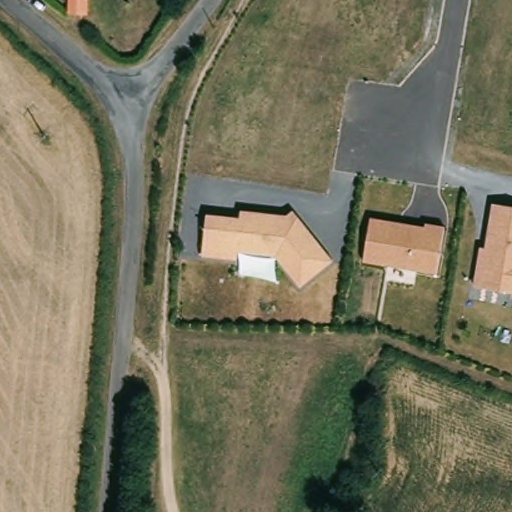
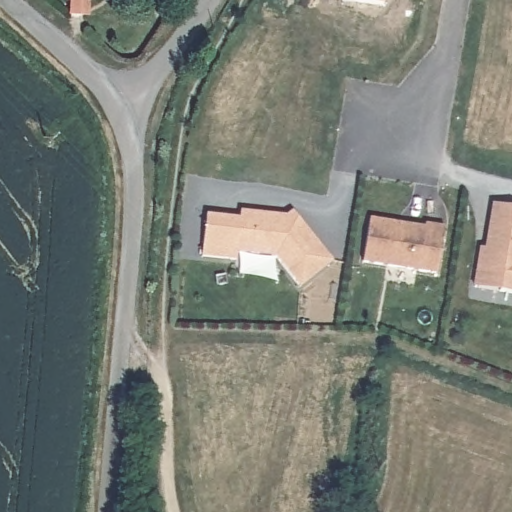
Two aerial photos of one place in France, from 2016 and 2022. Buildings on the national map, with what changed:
unchanged [(95,5),(67,3),(67,0),(95,0),(95,5)]
unchanged [(512,286),(477,279),(488,198),(512,204),(512,286)]
unchanged [(238,214),(241,203),(288,210),(335,261),(302,285),(275,258),(202,250),(206,210),(238,214)]
unchanged [(421,223),(422,218),(445,222),(438,274),(362,260),(367,213),(421,223)]

